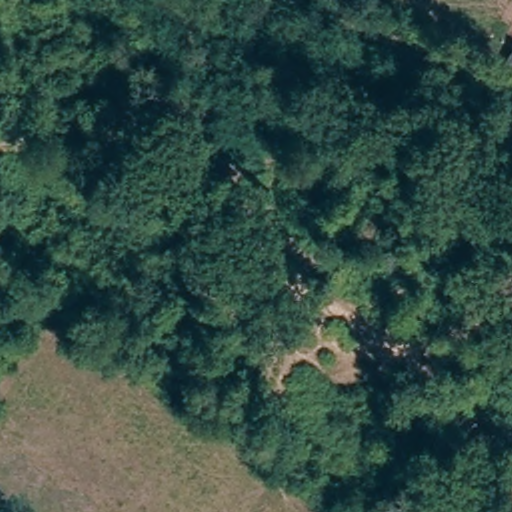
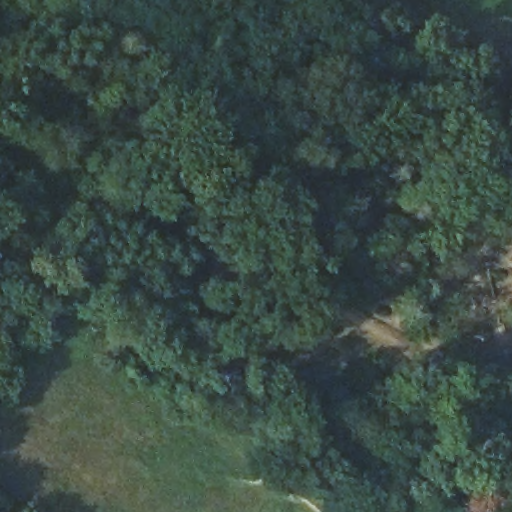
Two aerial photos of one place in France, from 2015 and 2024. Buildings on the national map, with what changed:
unchanged [(502,72),(512,55),(512,78),(502,72)]

